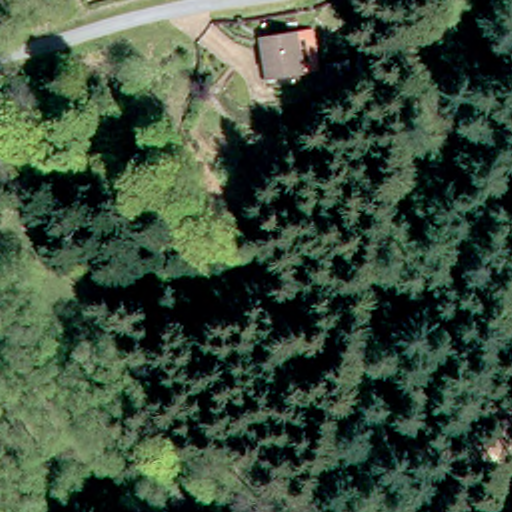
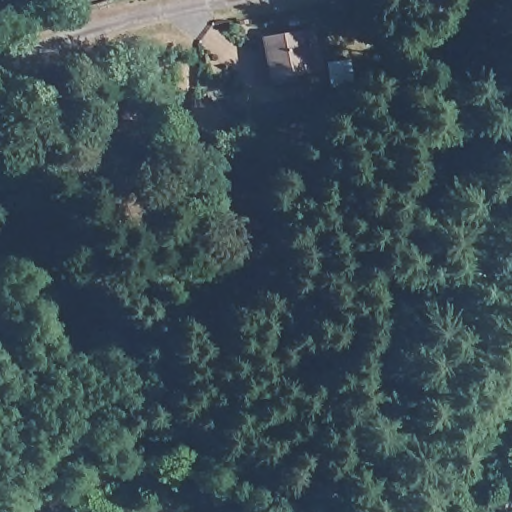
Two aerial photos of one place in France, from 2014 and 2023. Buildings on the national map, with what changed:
unchanged [(273,82),(273,69),(272,37),(299,36),(300,69),(295,69),(294,82),(273,82)]

